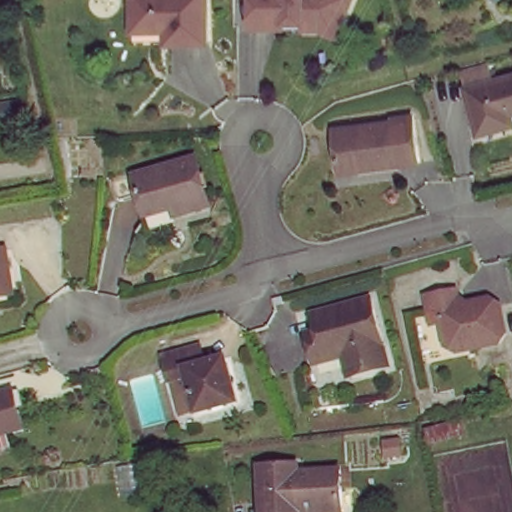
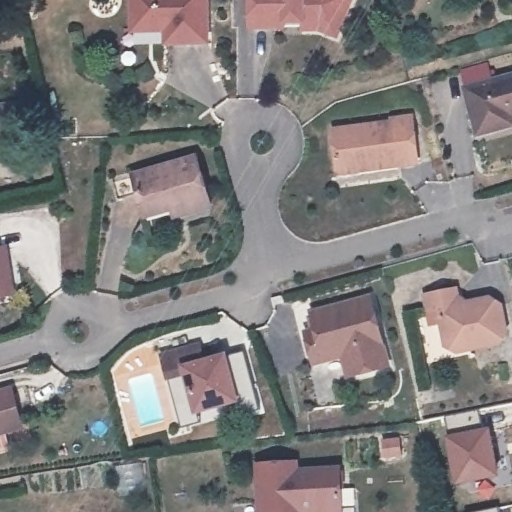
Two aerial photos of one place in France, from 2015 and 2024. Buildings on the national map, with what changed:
unchanged [(205,45),(134,47),(133,0),(205,0),(205,45)]
unchanged [(321,32),(305,33),(300,27),(253,30),(253,0),(353,0),(344,25),(339,37),(321,32)]
unchanged [(480,134),(466,88),(512,74),(512,124),(507,126),(480,134)]
unchanged [(421,167),(401,168),(401,162),(362,166),(363,174),(342,175),(337,134),(414,125),(421,167)]
unchanged [(117,182),(139,176),(200,157),(215,204),(192,212),(187,204),(152,215),(145,194),(124,200),(117,182)]
unchanged [(13,295),(0,299),(0,259),(4,258),(13,295)]
unchanged [(374,289),(391,356),(351,365),(347,344),(316,350),(312,335),(308,319),(317,318),(314,303),(374,289)]
unchanged [(463,304),(493,299),(503,306),(509,333),(503,341),(460,350),(457,341),(451,343),(444,314),(434,315),(430,296),(459,289),(463,304)]
unchanged [(173,385),(171,385),(165,359),(201,348),(208,367),(227,363),(238,408),(199,418),(184,424),(173,385)]
unchanged [(339,400),(321,403),(313,369),(331,365),(339,400)]
unchanged [(9,390),(18,425),(0,430),(0,392),(9,390)]
new [(489,426),(500,478),(454,487),(445,435),(489,426)]
unchanged [(405,457),(388,458),(386,441),(403,439),(405,457)]
unchanged [(265,512),(264,470),(302,467),(303,476),(343,475),(344,512),(265,512)]
new [(499,512),(477,512),(499,508),(499,512)]

